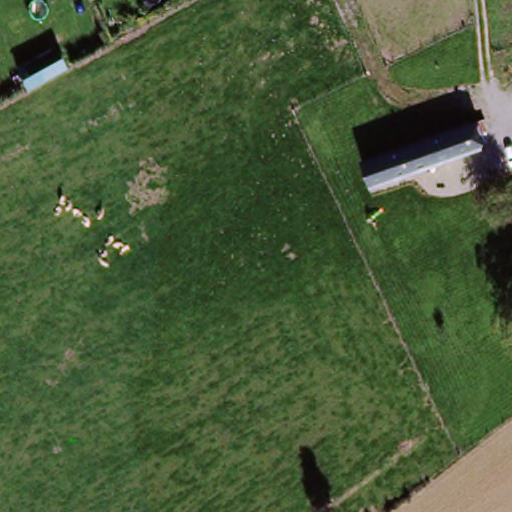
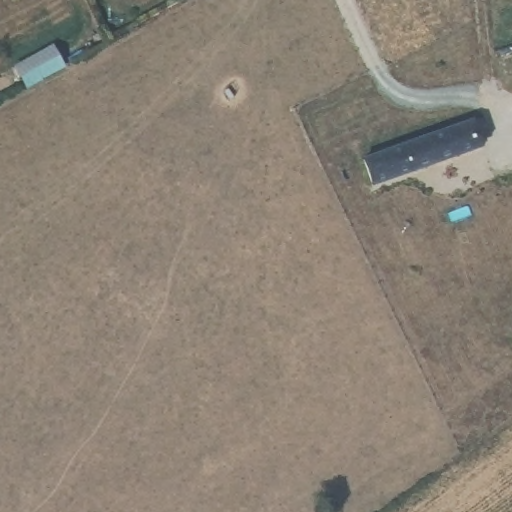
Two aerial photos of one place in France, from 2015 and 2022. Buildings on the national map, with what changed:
unchanged [(370,156),(477,120),(485,144),(379,181),(370,156)]

